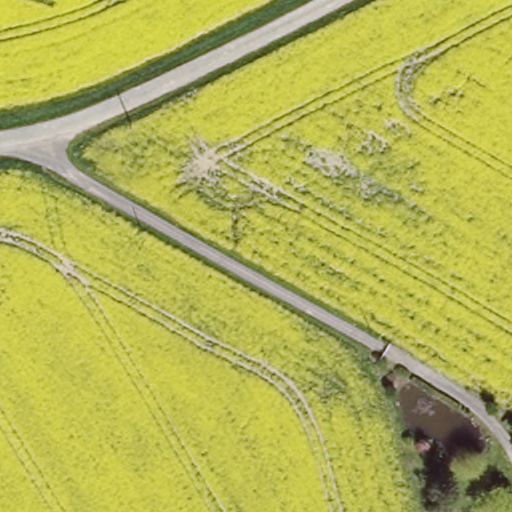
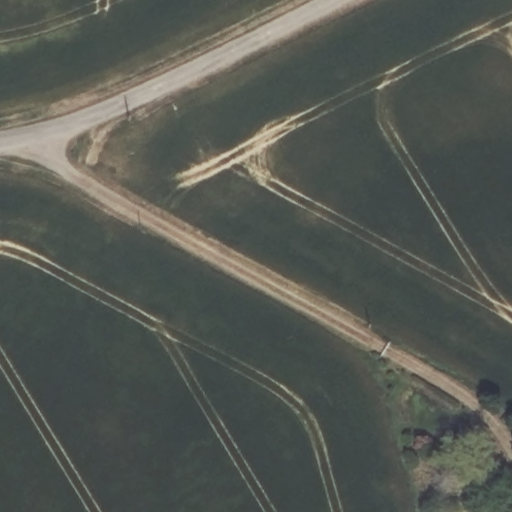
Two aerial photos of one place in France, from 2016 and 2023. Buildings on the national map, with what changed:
[]

